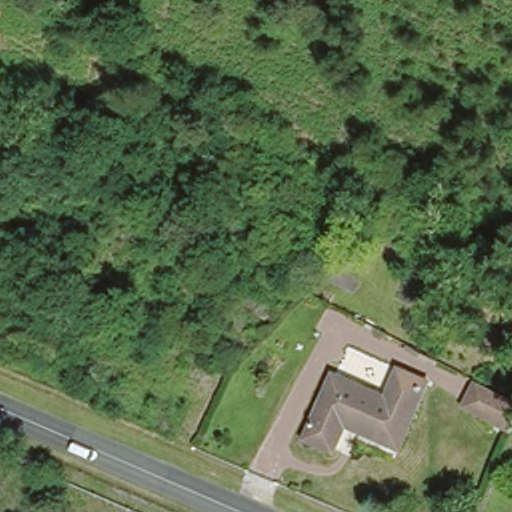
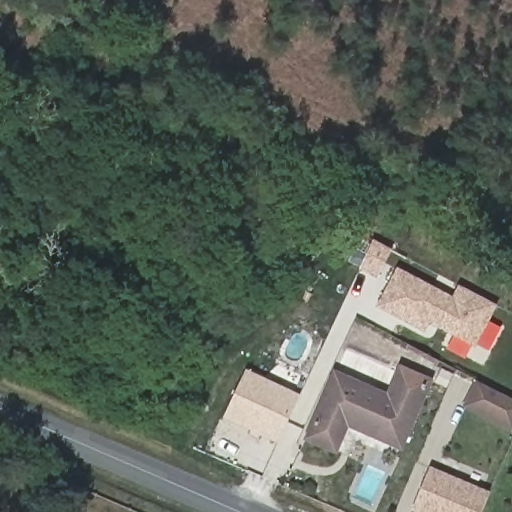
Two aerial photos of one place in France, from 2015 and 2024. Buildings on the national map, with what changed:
new [(365,270),(378,243),(396,252),(383,280),(365,270)]
new [(478,348),(433,324),(427,333),(383,309),(402,273),(457,303),(465,290),(500,309),(478,348)]
unchanged [(392,399),(403,368),(426,377),(401,444),(350,424),(339,452),(316,443),(337,379),(392,399)]
new [(281,444),(227,419),(247,374),(301,399),(281,444)]
unchanged [(512,397),(512,429),(467,405),(479,380),(512,397)]
new [(415,512),(431,473),(491,496),(485,512),(415,512)]

